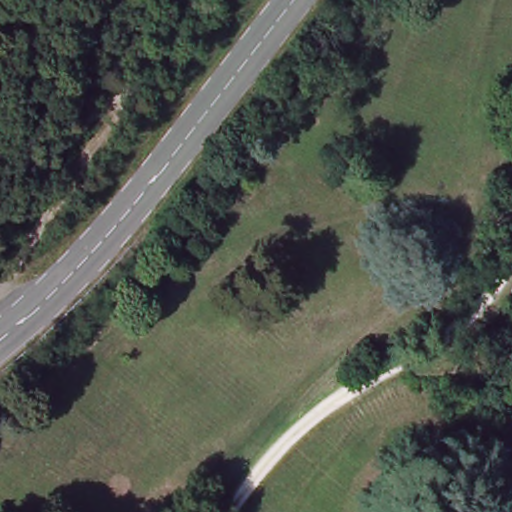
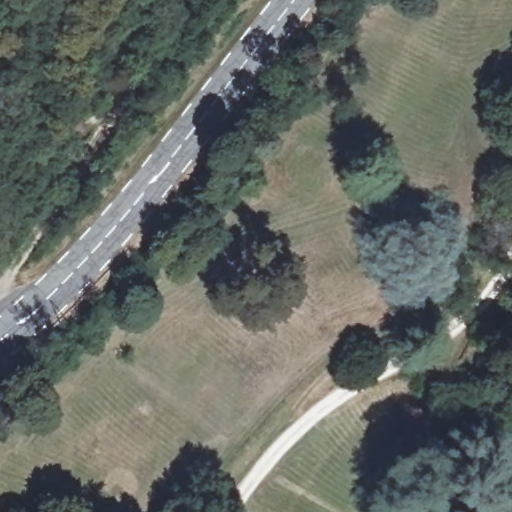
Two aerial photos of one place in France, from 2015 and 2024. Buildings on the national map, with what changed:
[]

